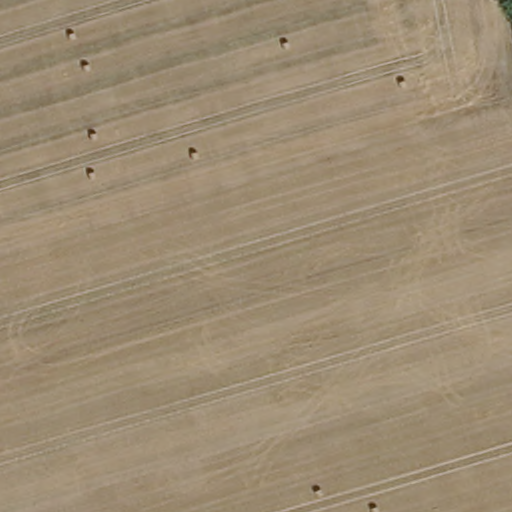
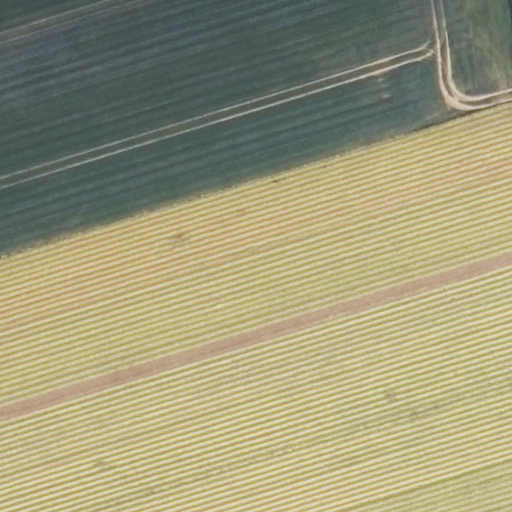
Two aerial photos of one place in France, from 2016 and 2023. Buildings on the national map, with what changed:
[]

